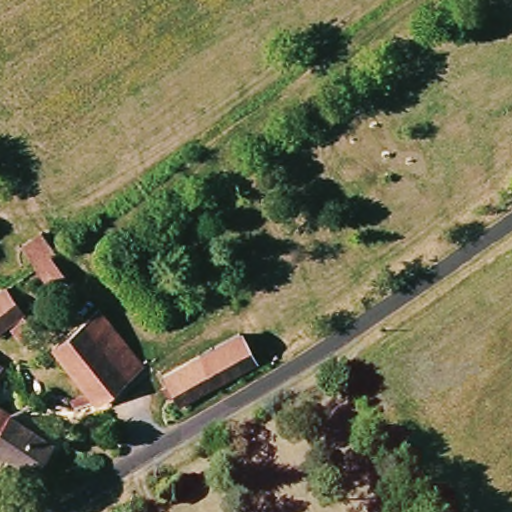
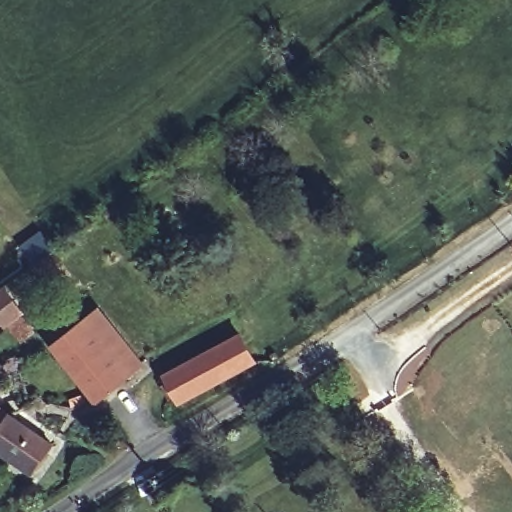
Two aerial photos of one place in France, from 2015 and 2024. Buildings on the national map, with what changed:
unchanged [(0,294),(9,288),(22,306),(20,312),(31,331),(20,341),(9,324),(0,329),(0,294)]
unchanged [(90,391),(54,341),(100,306),(139,362),(95,396),(90,391)]
unchanged [(165,377),(179,367),(241,335),(257,365),(181,407),(165,377)]
unchanged [(34,479),(0,454),(0,408),(56,450),(34,479)]

